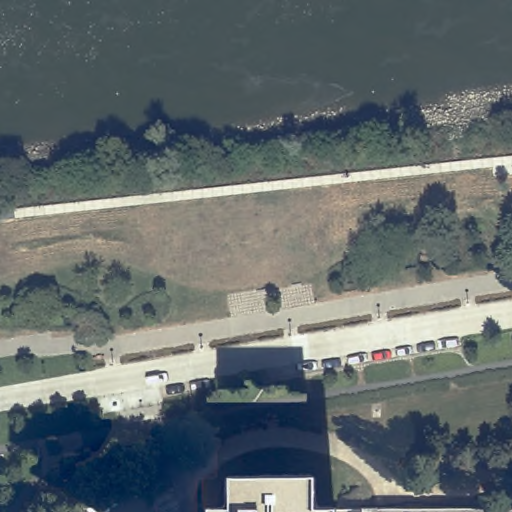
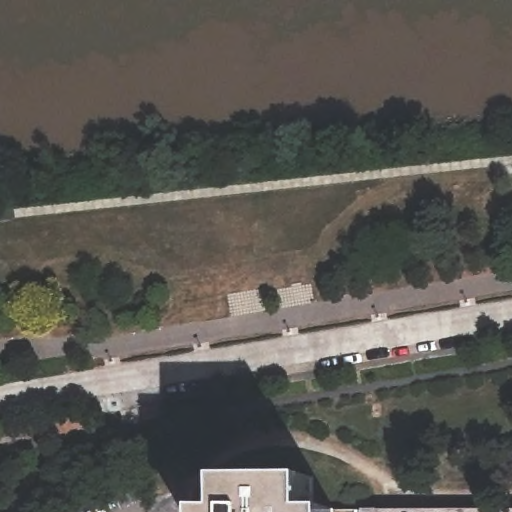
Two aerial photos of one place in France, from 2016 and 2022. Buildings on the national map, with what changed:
unchanged [(232,507),(232,475),(319,475),(318,506),(338,507),(338,512),(213,512),(213,506),(232,507)]
unchanged [(512,506),(512,512),(365,512),(365,506),(512,506)]

